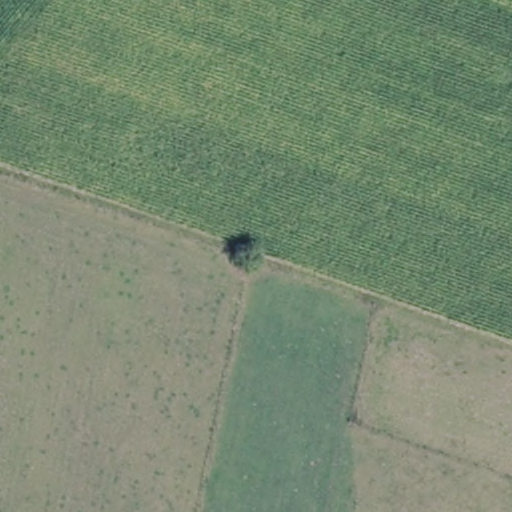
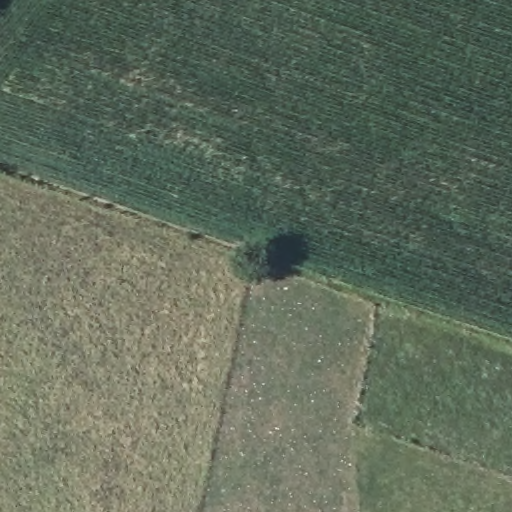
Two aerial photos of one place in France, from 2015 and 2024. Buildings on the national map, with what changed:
[]

